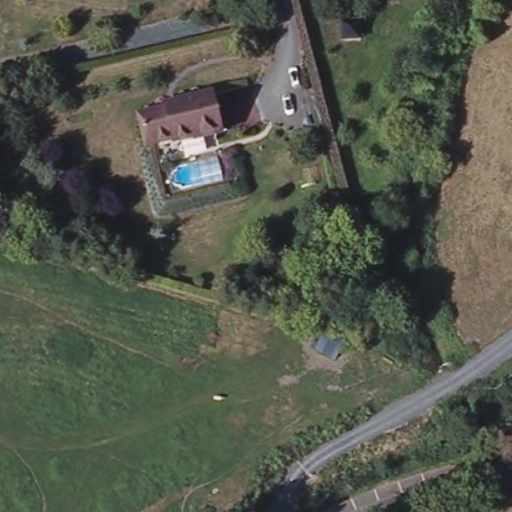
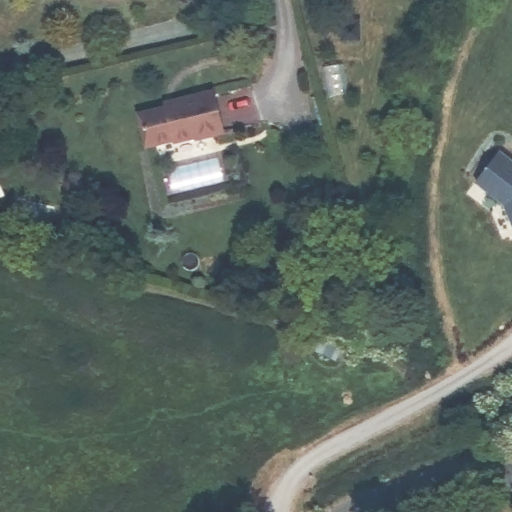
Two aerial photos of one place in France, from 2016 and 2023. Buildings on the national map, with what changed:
unchanged [(148,147),(138,104),(222,85),(231,128),(148,147)]
new [(500,150),(512,160),(512,229),(503,209),(477,186),(500,150)]
unchanged [(292,347),(311,319),(350,341),(332,365),(292,347)]

